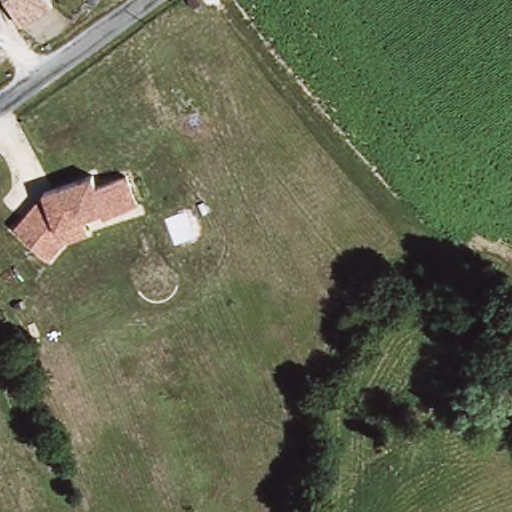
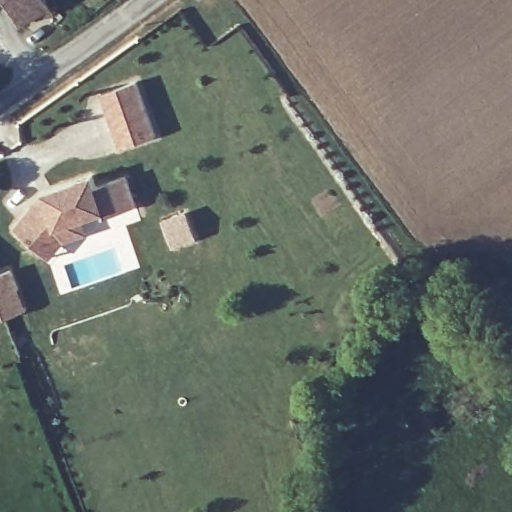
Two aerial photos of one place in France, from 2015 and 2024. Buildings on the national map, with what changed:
unchanged [(21,30),(4,0),(50,0),(53,6),(21,30)]
new [(133,84),(153,137),(119,151),(98,96),(133,84)]
unchanged [(16,229),(44,192),(95,175),(98,185),(128,175),(139,205),(108,215),(106,209),(83,217),(86,233),(66,240),(54,257),(16,229)]
new [(182,216),(192,241),(172,250),(163,224),(182,216)]
new [(11,285),(23,311),(3,319),(1,317),(0,318),(0,274),(5,272),(11,285)]

